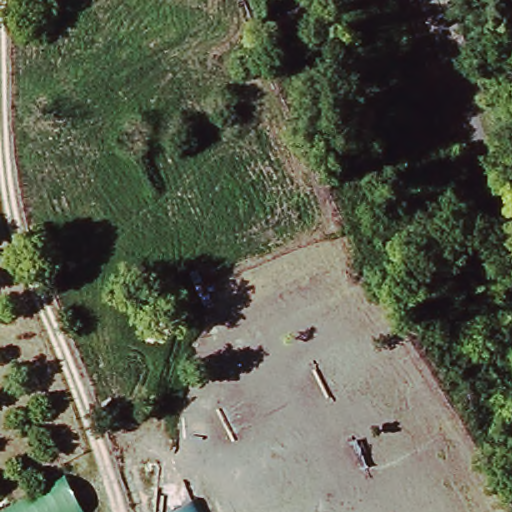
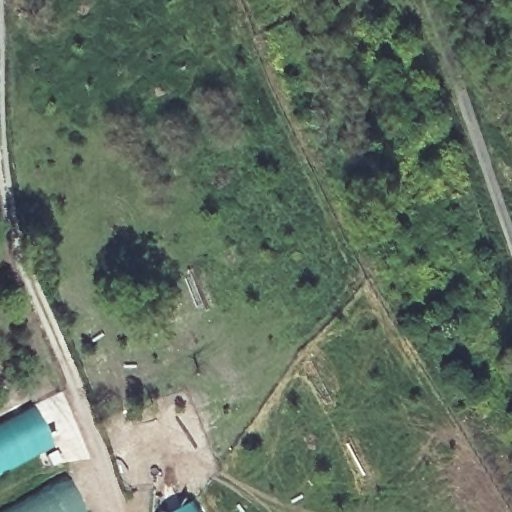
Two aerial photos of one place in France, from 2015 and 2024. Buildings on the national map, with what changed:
new [(53,445),(0,475),(0,417),(32,402),(53,445)]
unchanged [(86,512),(0,512),(0,510),(67,475),(86,512)]
unchanged [(197,495),(205,512),(167,512),(197,495)]

